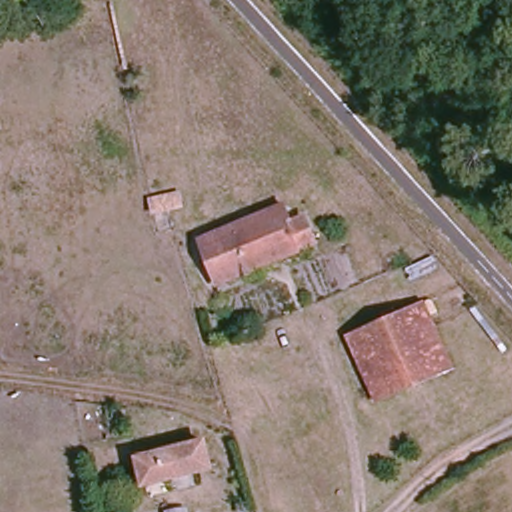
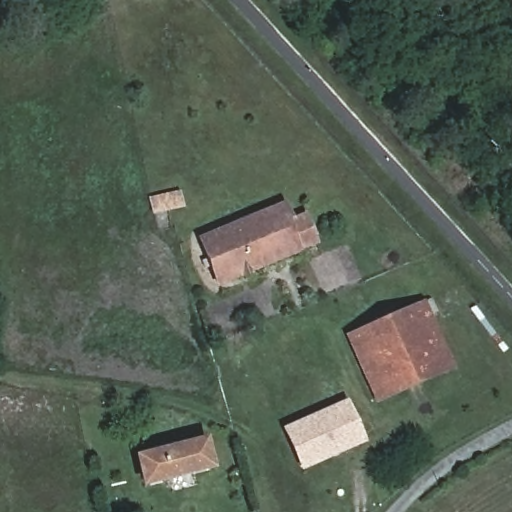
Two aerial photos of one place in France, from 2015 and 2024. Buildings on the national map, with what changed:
unchanged [(200,246),(288,210),(295,228),(310,222),(321,248),(219,290),(200,246)]
unchanged [(429,304),(445,336),(452,333),(465,364),(377,400),(350,336),(429,304)]
new [(343,405),(358,440),(298,465),(283,431),(343,405)]
unchanged [(213,471),(144,488),(137,459),(206,442),(213,471)]

